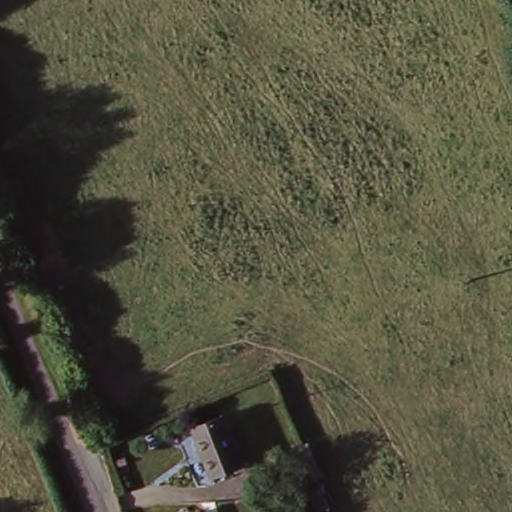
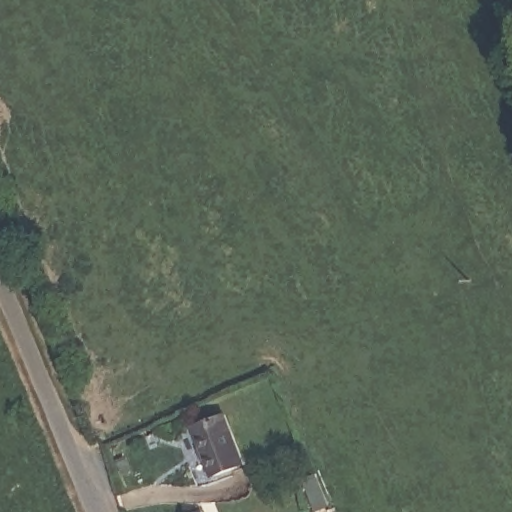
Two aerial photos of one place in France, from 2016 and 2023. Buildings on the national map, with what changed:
unchanged [(222,418),(242,462),(215,476),(195,430),(222,418)]
unchanged [(200,512),(192,512),(200,510),(200,512)]

